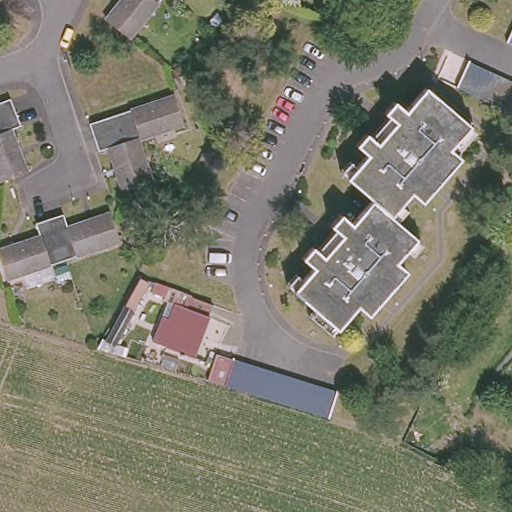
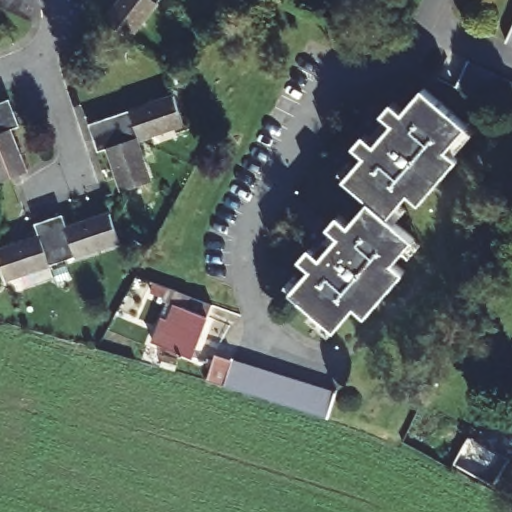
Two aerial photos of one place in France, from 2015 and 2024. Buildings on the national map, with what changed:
unchanged [(108,21),(124,0),(162,0),(132,40),(108,21)]
unchanged [(512,33),(512,41),(509,40),(512,33)]
unchanged [(493,105),(480,99),(468,94),(455,88),(468,61),(481,66),(493,72),(506,78),(512,81),(512,114),(506,111),(493,105)]
unchanged [(341,173),(350,163),(355,166),(365,154),(355,145),(366,133),(372,138),(390,116),(385,112),(395,100),(403,108),(425,85),(481,138),(462,159),(468,165),(427,210),(416,200),(407,210),(412,215),(402,227),(372,201),(341,173)]
unchanged [(177,94),(186,121),(140,138),(153,180),(125,189),(110,146),(100,150),(91,123),(177,94)]
unchanged [(3,180),(0,172),(0,102),(13,96),(25,124),(15,128),(31,170),(17,175),(3,180)]
unchanged [(402,227),(425,247),(422,250),(415,258),(411,254),(402,266),(412,274),(411,275),(371,322),(359,312),(355,316),(335,339),(312,318),(316,314),(288,288),(299,275),(306,282),(316,271),(305,261),(315,248),(320,253),(337,233),(332,228),(342,215),(355,224),(372,201),(402,227)]
unchanged [(62,219),(66,231),(109,217),(118,245),(7,282),(0,259),(0,252),(40,239),(36,227),(62,219)]
unchanged [(211,310),(191,364),(157,351),(176,296),(211,310)]
unchanged [(317,413),(308,411),(303,409),(295,407),(283,404),(270,401),(256,398),(243,394),(235,392),(229,391),(211,386),(211,385),(212,384),(219,358),(237,363),(250,366),(264,370),(277,373),(290,377),(302,380),(315,383),(330,387),(344,391),(337,416),(337,417),(337,418),(322,414),(317,413)]

